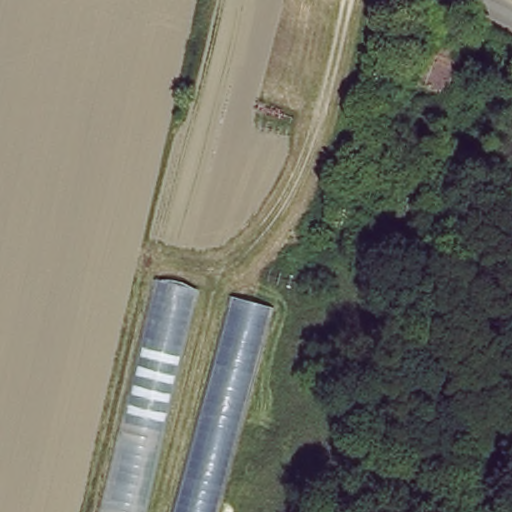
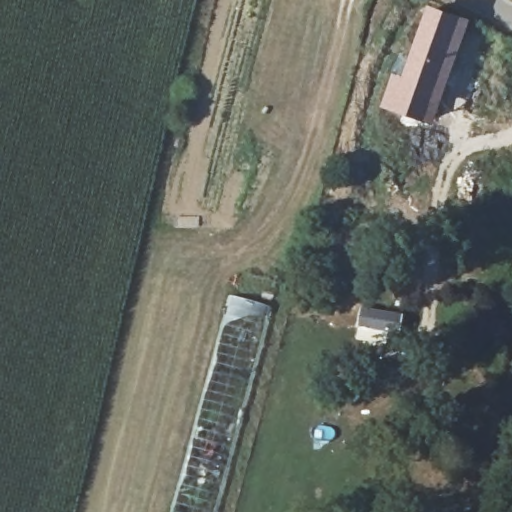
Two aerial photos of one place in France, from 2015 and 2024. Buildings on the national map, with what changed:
demolished [(404,75),(433,1),(438,3),(471,17),(443,86),(404,75)]
new [(393,70),(401,73),(428,5),(472,20),(434,125),(379,105),(393,70)]
demolished [(199,287),(142,512),(99,512),(152,277),(199,287)]
unchanged [(216,512),(175,512),(230,299),(269,310),(216,512)]

